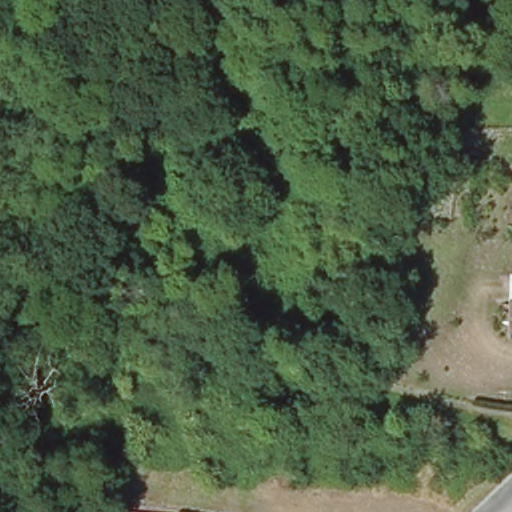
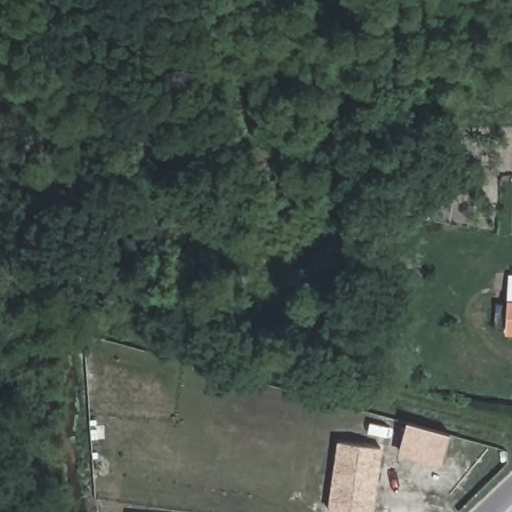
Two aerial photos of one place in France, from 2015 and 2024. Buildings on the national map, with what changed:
unchanged [(507,329),(507,303),(512,303),(512,329),(507,329)]
new [(407,422),(449,434),(441,467),(399,455),(407,422)]
new [(383,448),(374,512),(344,512),(329,510),(339,441),(383,448)]

